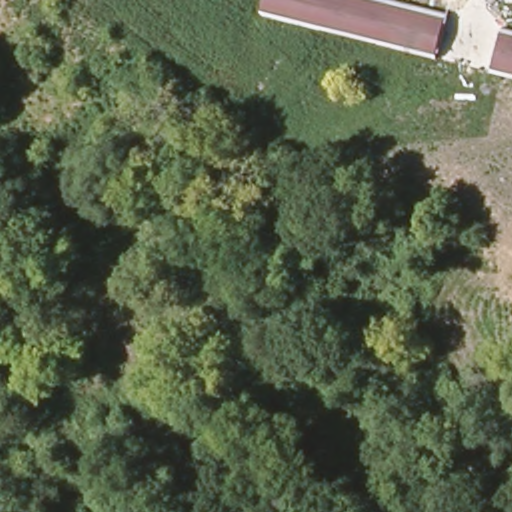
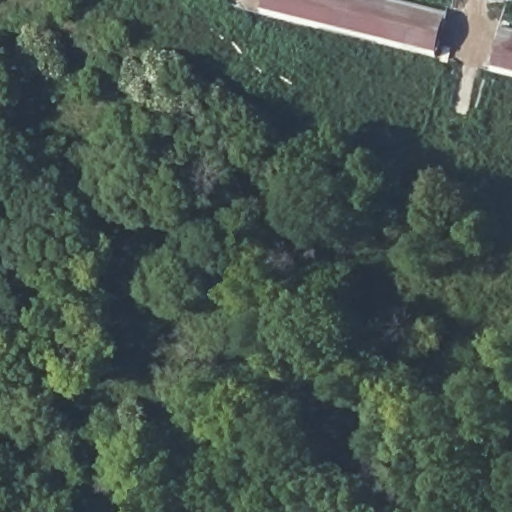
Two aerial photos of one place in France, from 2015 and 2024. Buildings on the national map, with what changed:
unchanged [(260,11),(264,0),(393,0),(448,14),(439,59),(260,11)]
unchanged [(502,30),(512,32),(512,71),(493,66),(502,30)]

